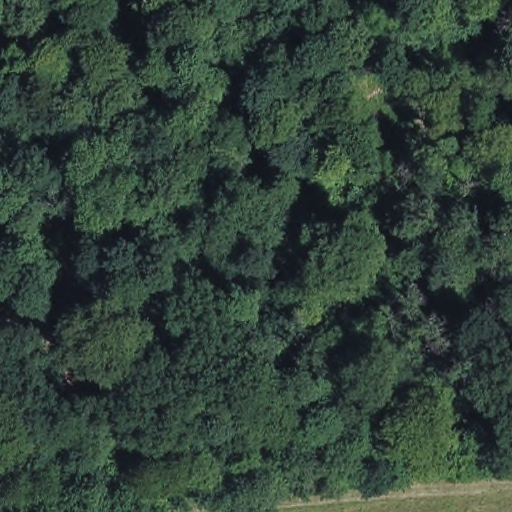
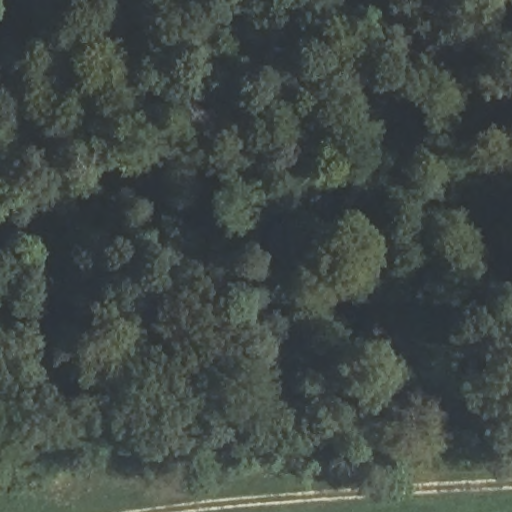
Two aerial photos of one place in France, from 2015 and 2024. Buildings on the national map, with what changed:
[]

